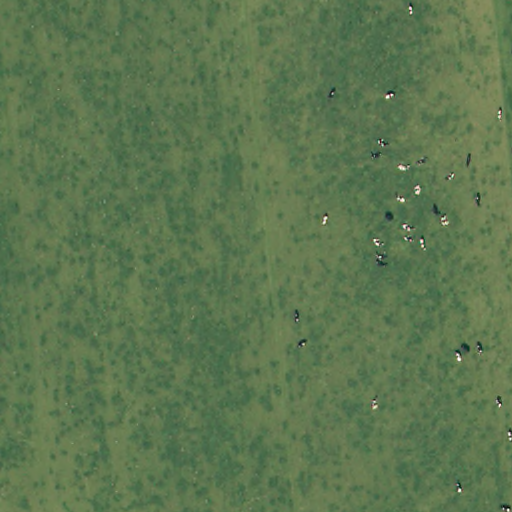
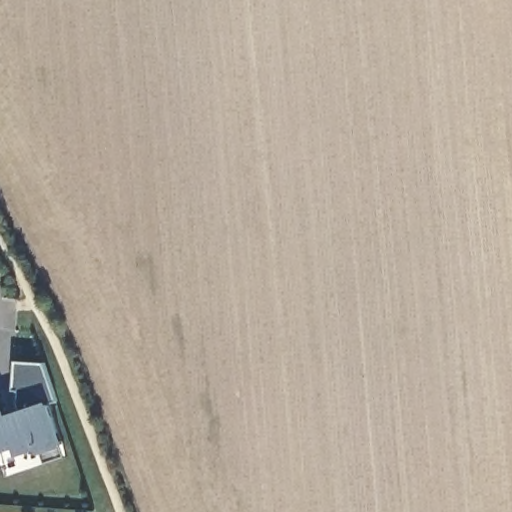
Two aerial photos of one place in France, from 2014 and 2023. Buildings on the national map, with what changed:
new [(40,452),(39,447),(18,454),(15,446),(0,450),(0,413),(5,412),(18,408),(16,404),(17,391),(12,390),(14,361),(44,363),(57,402),(48,405),(61,445),(65,457),(44,464),(40,452)]

